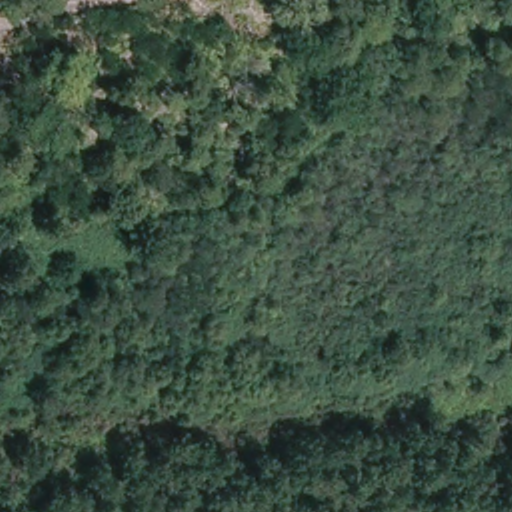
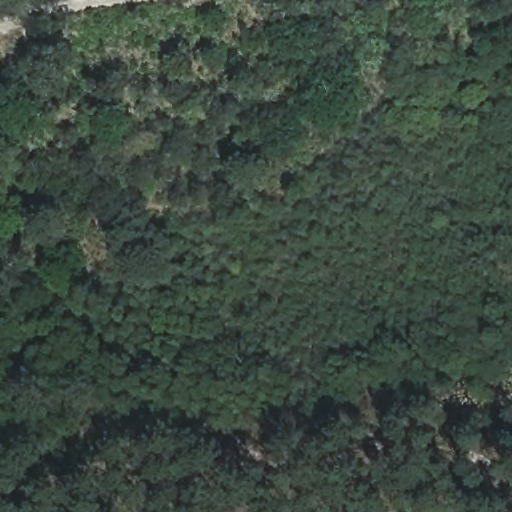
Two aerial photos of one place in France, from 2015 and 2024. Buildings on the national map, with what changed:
[]

